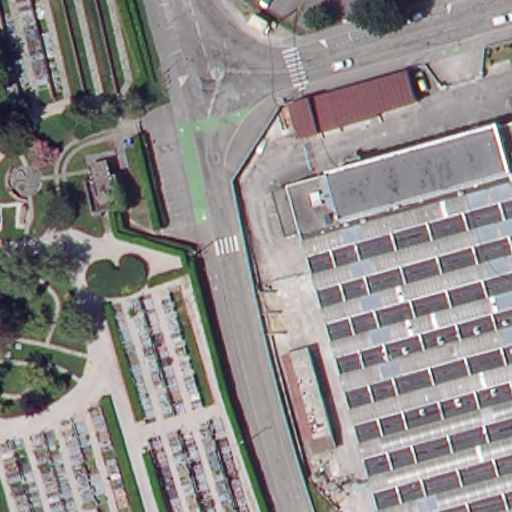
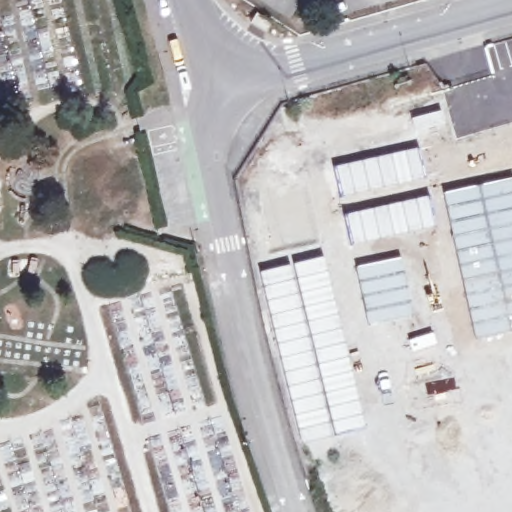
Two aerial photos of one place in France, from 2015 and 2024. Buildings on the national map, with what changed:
demolished [(292,102),(410,69),(420,101),(380,112),(380,115),(302,137),(292,102)]
demolished [(338,177),(507,129),(508,132),(512,130),(512,512),(385,512),(307,236),(290,241),(277,196),(339,178),(338,177)]
new [(418,146),(425,177),(340,197),(333,165),(418,146)]
unchanged [(131,198),(130,199),(129,201),(125,204),(95,211),(93,210),(91,207),(90,205),(83,175),(83,173),(85,171),(87,169),(118,162),(120,163),(123,165),(125,169),(125,170),(131,198)]
new [(512,328),(475,336),(442,191),(512,176),(512,328)]
new [(428,194),(435,226),(351,245),(344,214),(428,194)]
new [(323,254),(356,393),(353,394),(354,396),(348,397),(349,403),(336,406),(335,402),(337,402),(335,392),(324,394),(308,398),(306,398),(304,402),(301,407),(302,412),(295,414),(260,270),(323,254)]
new [(400,256),(413,313),(368,323),(355,266),(400,256)]
demolished [(315,437),(291,351),(308,346),(332,432),(315,437)]

